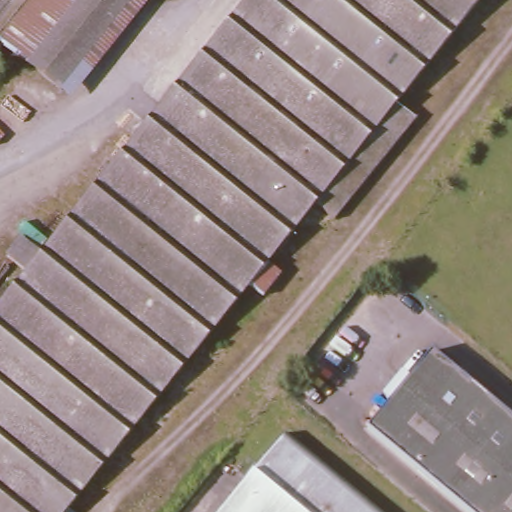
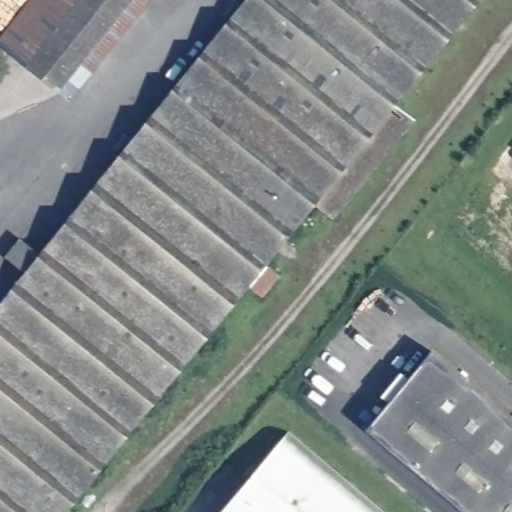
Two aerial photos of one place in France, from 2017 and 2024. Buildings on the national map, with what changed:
unchanged [(0,38),(0,33),(25,0),(144,0),(68,91),(0,38)]
unchanged [(28,274),(9,258),(23,243),(42,258),(136,139),(118,124),(216,0),(473,0),(61,512),(0,512),(0,310),(28,274)]
unchanged [(512,512),(474,512),(350,410),(359,399),(379,415),(434,348),(512,412),(512,512)]
unchanged [(283,437),(374,512),(221,512),(283,437)]

